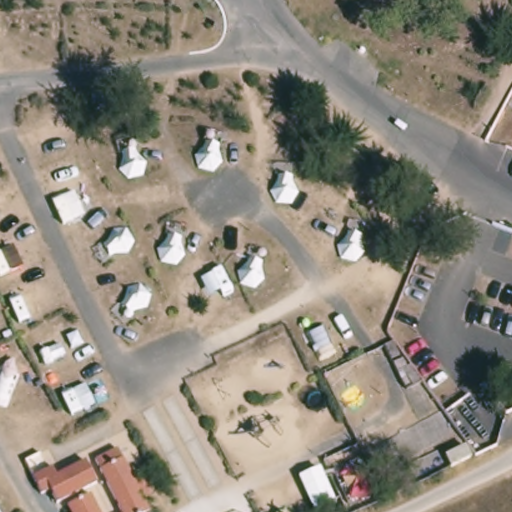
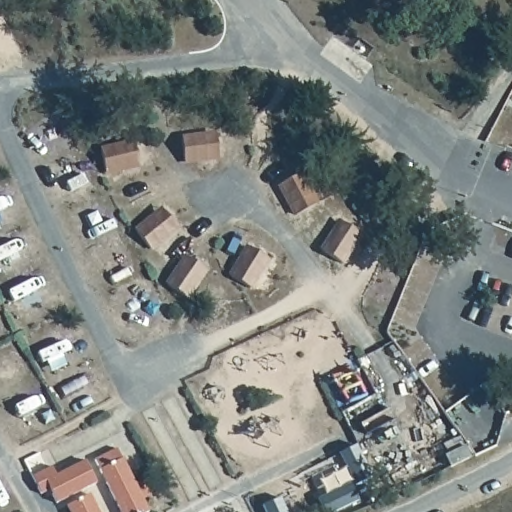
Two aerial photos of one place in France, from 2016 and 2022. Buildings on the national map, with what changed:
unchanged [(111,451),(128,487),(136,484),(142,497),(135,501),(140,512),(115,512),(89,461),(111,451)]
unchanged [(50,505),(44,492),(36,497),(27,479),(47,470),(50,477),(79,463),(90,485),(50,505)]
unchanged [(84,497),(91,512),(63,512),(61,508),(84,497)]

